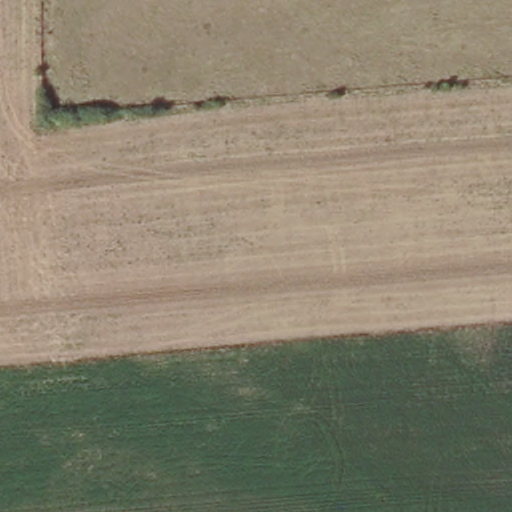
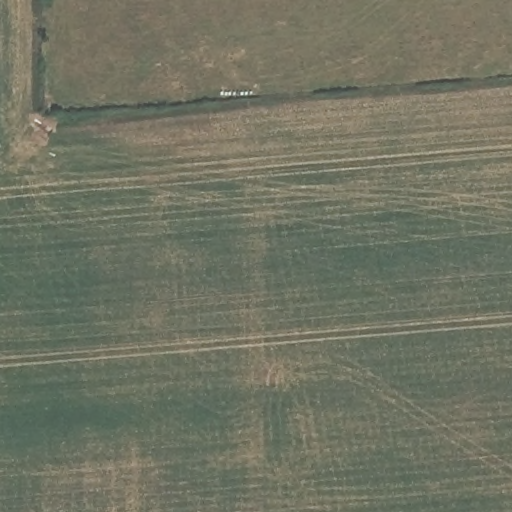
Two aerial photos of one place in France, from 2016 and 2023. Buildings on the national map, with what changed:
[]

